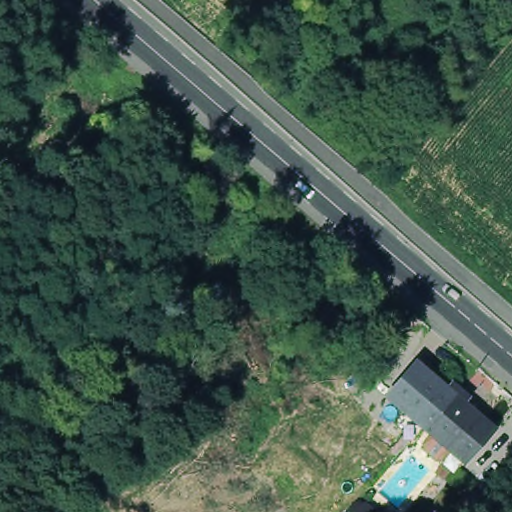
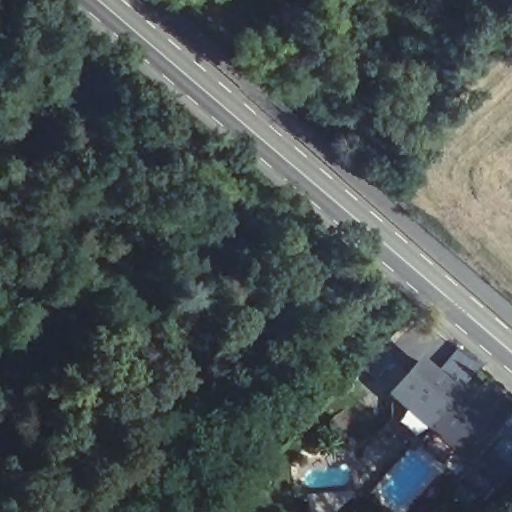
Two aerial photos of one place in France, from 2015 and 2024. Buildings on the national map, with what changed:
unchanged [(301,308),(268,273),(281,260),(315,295),(301,308)]
unchanged [(326,333),(316,321),(334,303),(345,314),(326,333)]
unchanged [(418,430),(414,427),(417,423),(407,413),(403,417),(396,410),(406,399),(388,384),(418,350),(448,376),(451,371),(461,379),(470,387),(466,392),(496,417),(507,427),(468,473),(418,430)]

